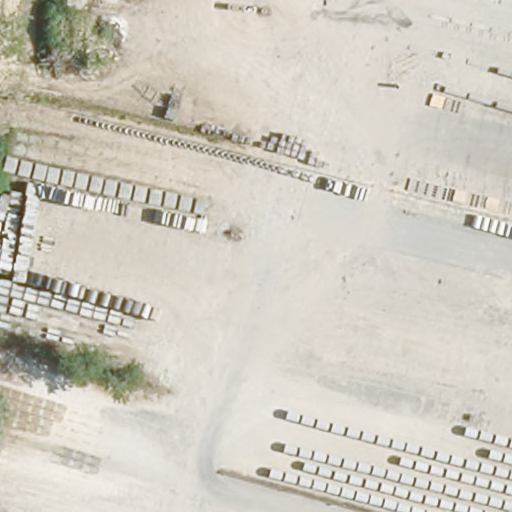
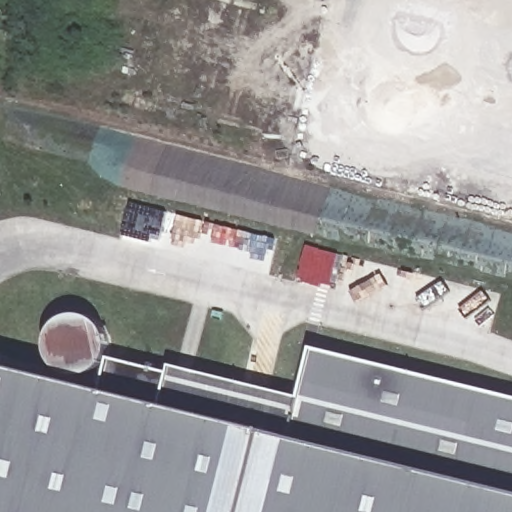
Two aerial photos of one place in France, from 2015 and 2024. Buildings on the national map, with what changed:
new [(322,288),(301,282),(302,279),(298,278),(308,246),(341,255),(331,287),(323,285),(322,288)]
new [(101,391),(111,358),(172,373),(174,365),(304,398),(315,348),(512,397),(512,512),(0,512),(0,376),(2,367),(101,391)]

